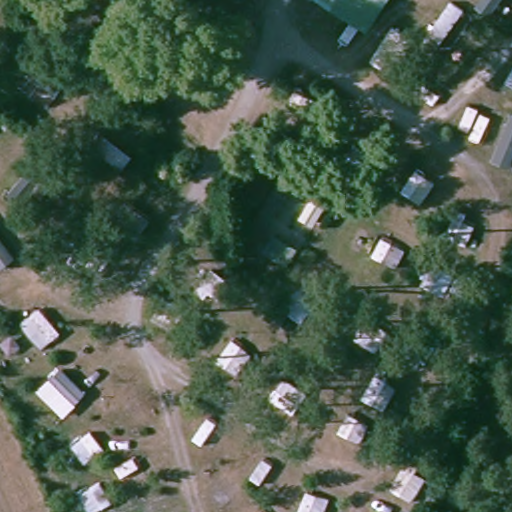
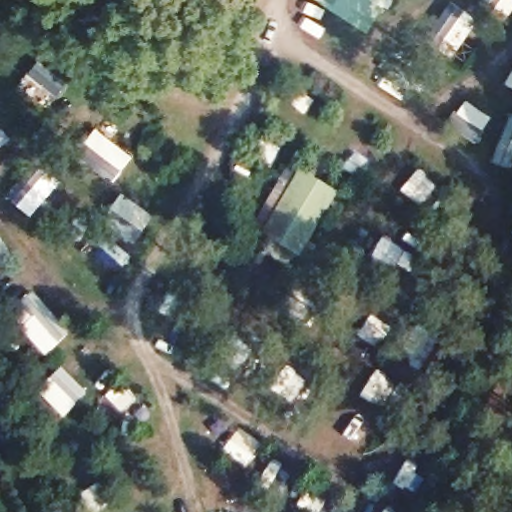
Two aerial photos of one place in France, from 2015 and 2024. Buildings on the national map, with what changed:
unchanged [(316,0),(390,0),(368,34),(316,0)]
unchanged [(111,189),(83,172),(105,141),(133,157),(111,189)]
new [(290,160),(339,190),(301,258),(293,254),(287,262),(249,240),(290,160)]
unchanged [(29,215),(10,191),(38,164),(60,186),(29,215)]

